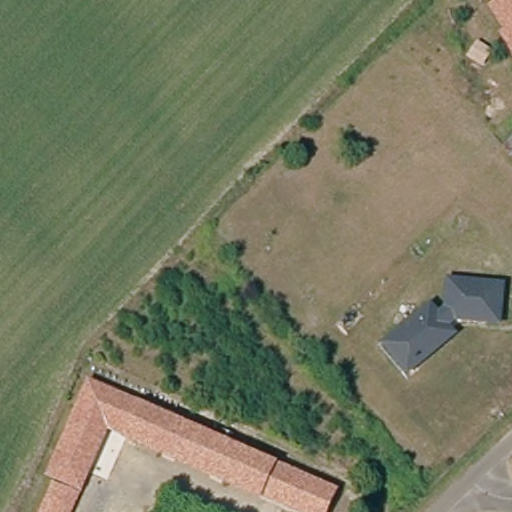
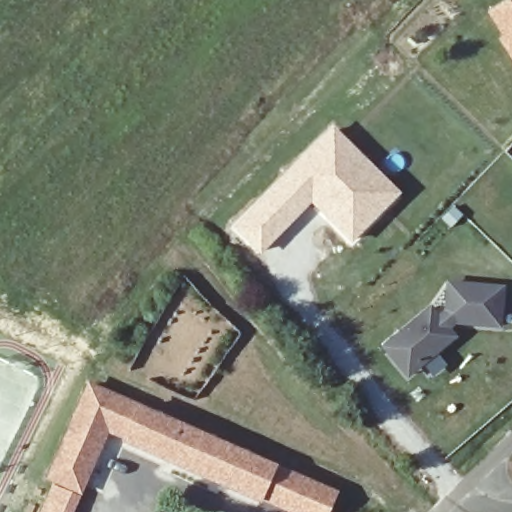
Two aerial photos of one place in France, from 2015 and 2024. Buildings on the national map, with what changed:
unchanged [(500,37),(503,34),(489,10),(503,0),(512,0),(512,57),(500,37)]
new [(333,125),(402,194),(351,246),(311,205),(259,256),(230,227),(333,125)]
unchanged [(509,146),(512,142),(512,149),(509,146)]
unchanged [(509,156),(512,152),(512,158),(509,156)]
unchanged [(507,286),(503,327),(457,325),(453,328),(459,337),(407,378),(381,347),(433,306),(438,313),(444,312),(447,281),(507,286)]
unchanged [(333,512),(286,512),(111,437),(85,495),(52,480),(94,389),(339,497),(333,512)]
unchanged [(66,512),(40,512),(51,487),(72,497),(66,512)]

